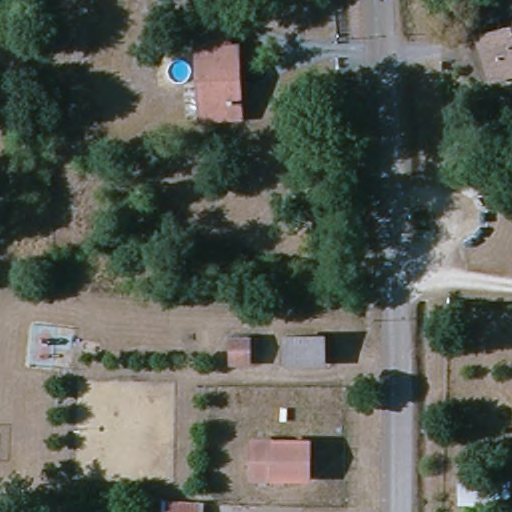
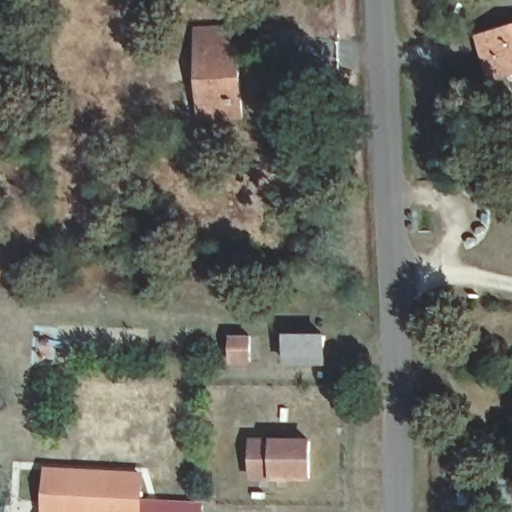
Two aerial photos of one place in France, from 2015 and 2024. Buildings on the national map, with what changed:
unchanged [(477,27),(512,24),(512,75),(482,77),(477,27)]
unchanged [(194,81),(191,27),(228,26),(230,47),(239,47),(240,119),(206,119),(195,119),(194,81)]
unchanged [(327,337),(326,361),(290,360),(290,335),(327,337)]
unchanged [(255,365),(233,365),(234,337),(256,338),(255,365)]
unchanged [(313,441),(312,479),(255,477),(256,439),(313,441)]
new [(145,471),(142,512),(42,512),(44,466),(145,471)]
unchanged [(455,506),(455,476),(502,477),(503,505),(455,506)]
demolished [(206,502),(206,512),(168,512),(169,499),(206,502)]
new [(205,501),(205,512),(161,512),(162,500),(205,501)]

